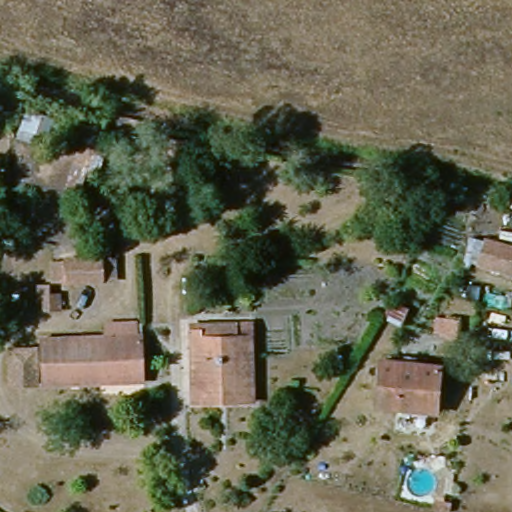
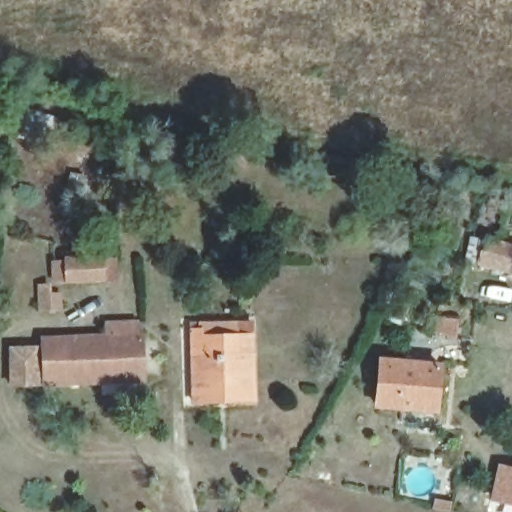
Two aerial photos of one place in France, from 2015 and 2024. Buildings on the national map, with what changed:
unchanged [(110,117),(99,172),(67,163),(82,113),(110,117)]
unchanged [(467,259),(478,222),(491,225),(490,236),(512,240),(512,272),(467,259)]
unchanged [(66,283),(66,308),(38,309),(39,281),(53,282),(52,258),(68,256),(69,242),(85,242),(88,254),(120,255),(121,278),(66,283)]
unchanged [(253,325),(255,400),(194,398),(194,378),(195,323),(253,325)]
unchanged [(44,334),(141,333),(144,378),(45,379),(44,334)]
unchanged [(36,346),(36,380),(12,379),(10,347),(36,346)]
unchanged [(434,408),(379,407),(381,358),(437,361),(434,408)]
new [(512,467),(512,505),(490,500),(498,464),(512,467)]

